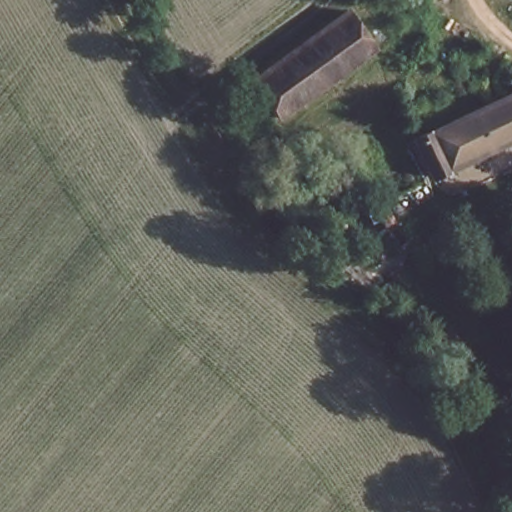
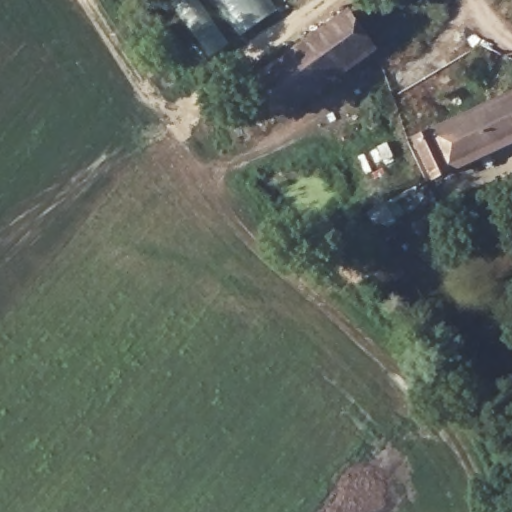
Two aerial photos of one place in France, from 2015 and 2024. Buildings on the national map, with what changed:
new [(209,57),(170,0),(270,0),(277,10),(209,57)]
unchanged [(356,10),(376,45),(286,112),(263,81),(356,10)]
unchanged [(417,133),(424,129),(426,133),(512,98),(512,139),(442,168),(434,172),(417,133)]

